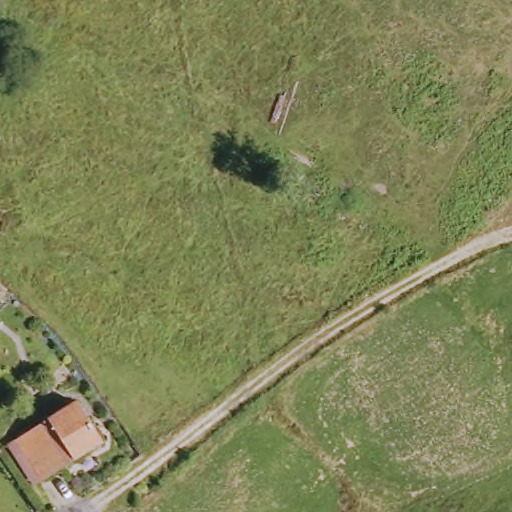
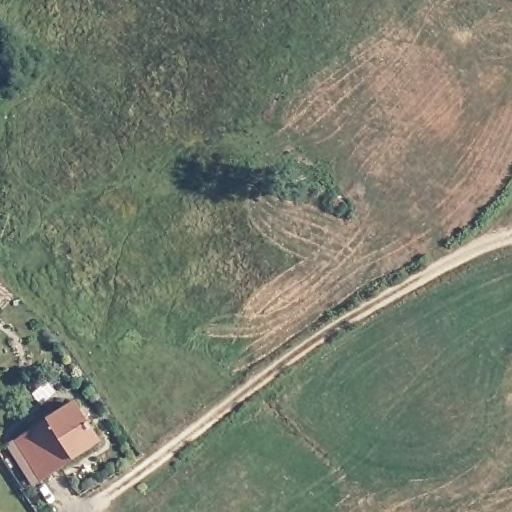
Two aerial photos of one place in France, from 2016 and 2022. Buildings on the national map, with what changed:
unchanged [(17,446),(25,441),(23,437),(81,402),(104,439),(47,477),(45,474),(37,479),(17,446)]
unchanged [(0,450),(0,445),(2,448),(0,450)]

